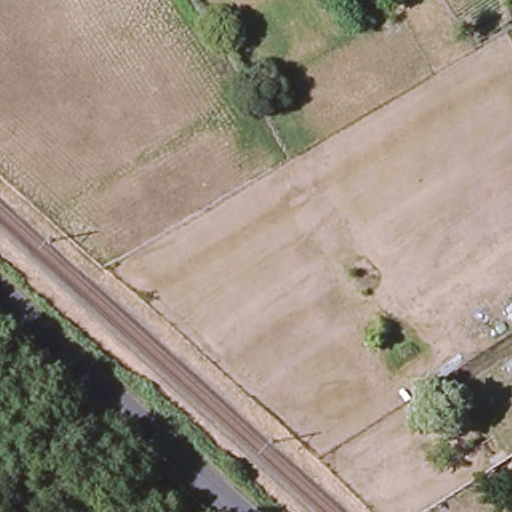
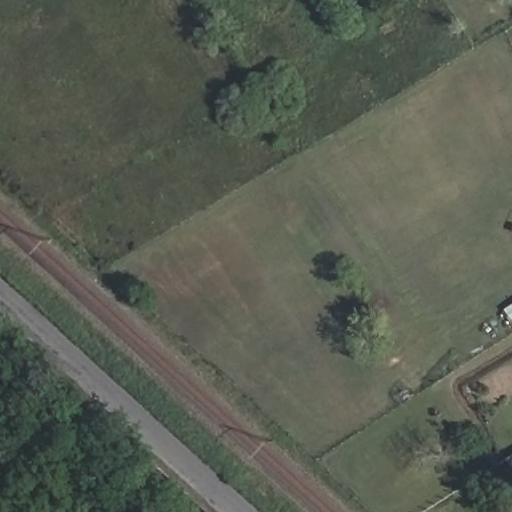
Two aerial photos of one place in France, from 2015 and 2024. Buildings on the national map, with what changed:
[]

